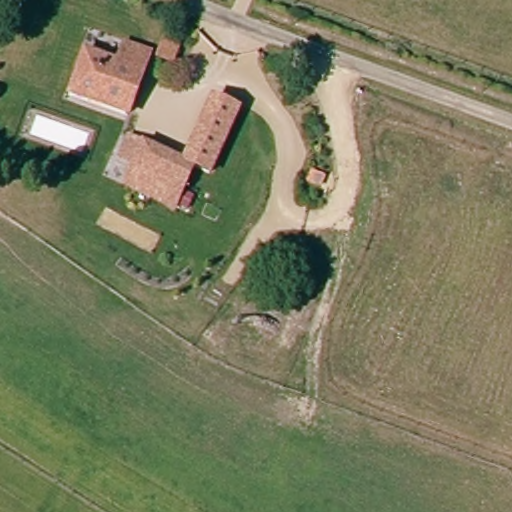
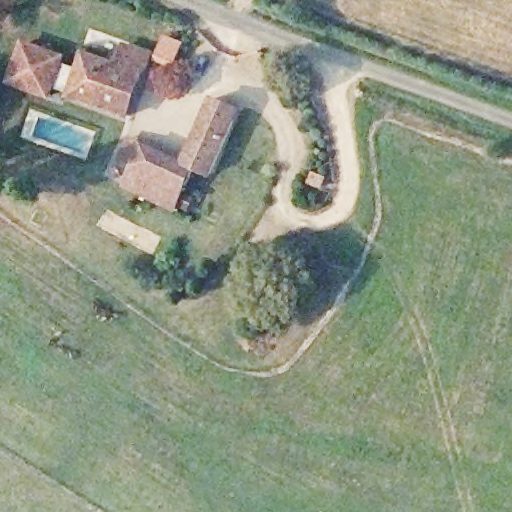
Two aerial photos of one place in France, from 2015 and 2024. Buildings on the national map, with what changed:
unchanged [(0,14),(0,0),(15,0),(8,17),(0,14)]
unchanged [(191,44),(183,63),(161,55),(168,35),(191,44)]
new [(67,56),(64,63),(76,68),(69,90),(56,86),(51,98),(6,84),(23,39),(67,56)]
unchanged [(129,118),(67,97),(82,52),(121,65),(128,43),(153,51),(129,118)]
unchanged [(212,154),(189,163),(181,160),(206,98),(231,108),(212,154)]
unchanged [(119,188),(139,142),(181,160),(189,163),(170,209),(119,188)]

